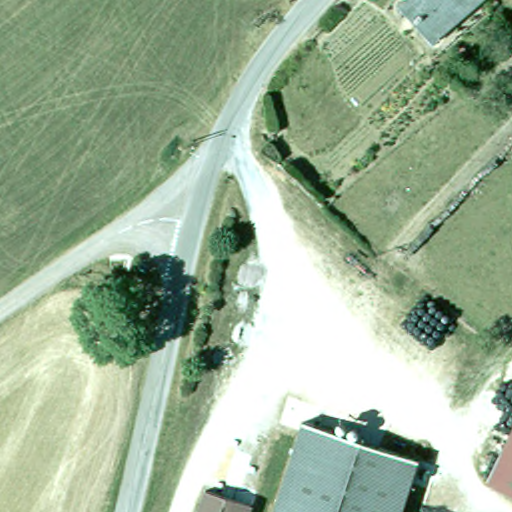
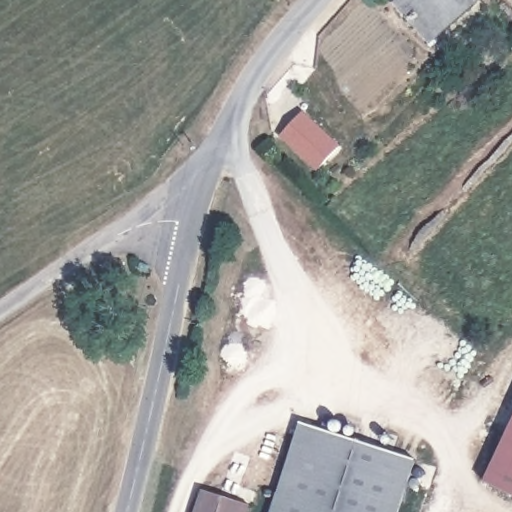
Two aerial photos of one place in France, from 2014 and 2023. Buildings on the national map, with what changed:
unchanged [(430,40),(400,6),(407,0),(477,0),(430,40)]
new [(305,113),(343,147),(319,171),(297,153),(282,137),(305,113)]
unchanged [(418,460),(401,512),(276,512),(304,423),(418,460)]
unchanged [(512,497),(498,490),(512,460),(512,497)]
unchanged [(247,504),(244,512),(194,512),(202,489),(247,504)]

